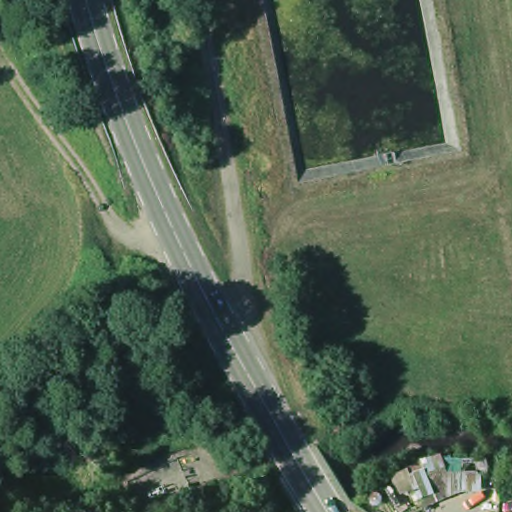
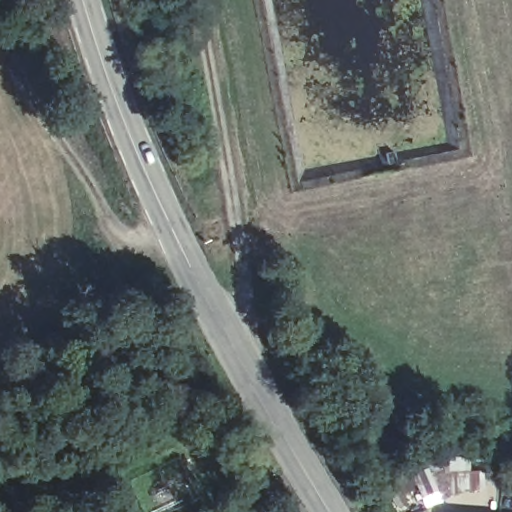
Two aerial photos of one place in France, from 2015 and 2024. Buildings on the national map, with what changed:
unchanged [(487,499),(423,504),(421,476),(485,471),(487,499)]

